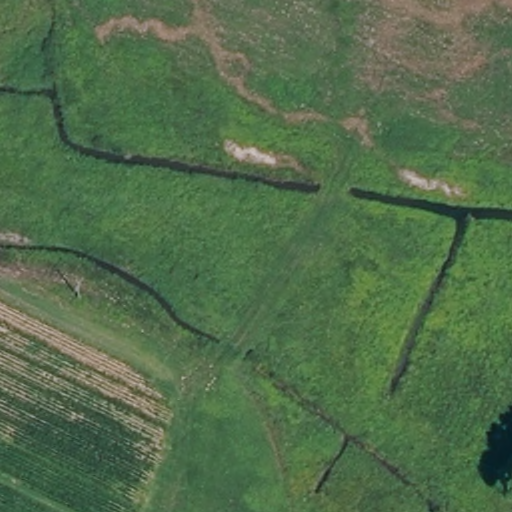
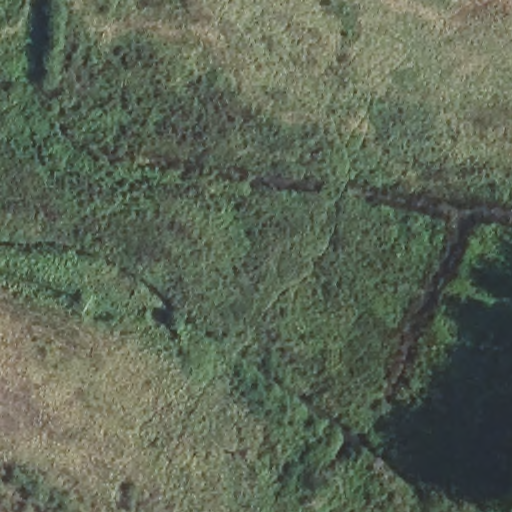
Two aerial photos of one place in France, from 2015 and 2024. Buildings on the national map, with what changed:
[]

